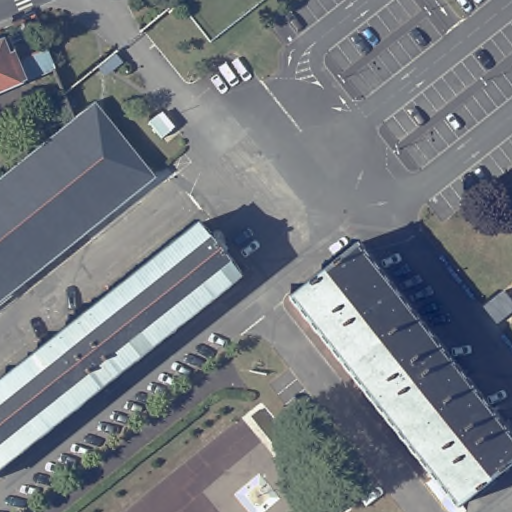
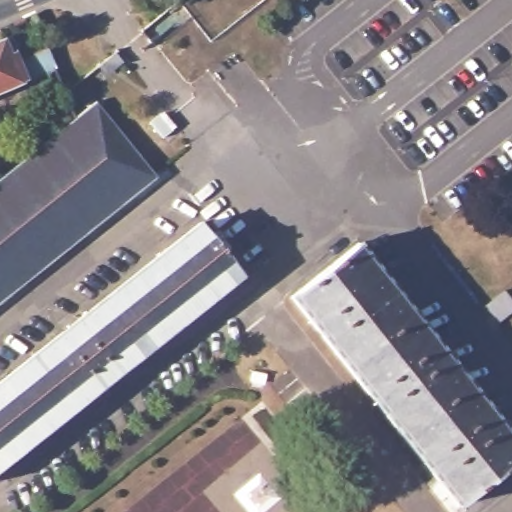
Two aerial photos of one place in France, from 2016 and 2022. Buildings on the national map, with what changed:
unchanged [(12,42),(21,64),(47,52),(56,74),(0,97),(0,47),(12,42)]
unchanged [(78,124),(98,108),(157,182),(0,308),(0,185),(78,124)]
unchanged [(202,221),(244,275),(0,469),(0,383),(202,221)]
unchanged [(295,302),(363,248),(512,439),(512,469),(460,512),(441,488),(295,302)]

